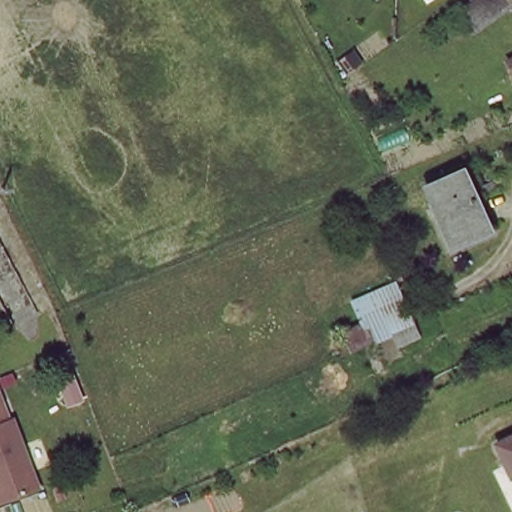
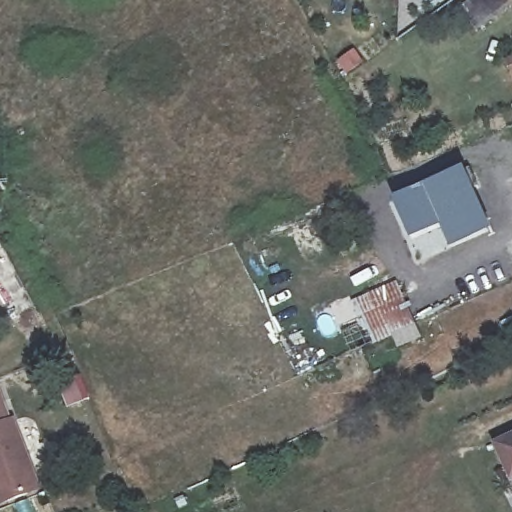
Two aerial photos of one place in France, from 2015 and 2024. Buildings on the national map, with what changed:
unchanged [(491,27),(467,44),(450,20),(475,2),(478,0),(495,0),(506,15),(491,27)]
unchanged [(495,0),(512,0),(512,11),(506,15),(495,0)]
unchanged [(512,57),(512,89),(501,64),(512,57)]
unchanged [(471,168),(496,229),(482,235),(457,174),(471,168)]
unchanged [(482,235),(450,246),(426,185),(457,174),(482,235)]
new [(426,185),(443,228),(413,241),(393,200),(426,185)]
unchanged [(428,334),(399,345),(394,335),(353,351),(344,327),(359,323),(351,298),(397,277),(428,334)]
unchanged [(41,492),(0,505),(0,392),(41,492)]
unchanged [(509,481),(495,450),(512,442),(512,480),(509,481)]

